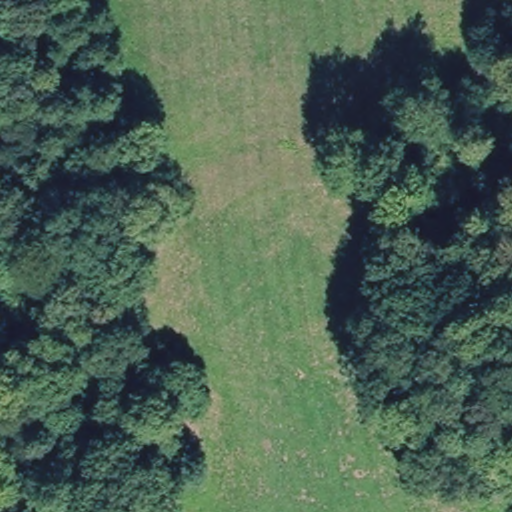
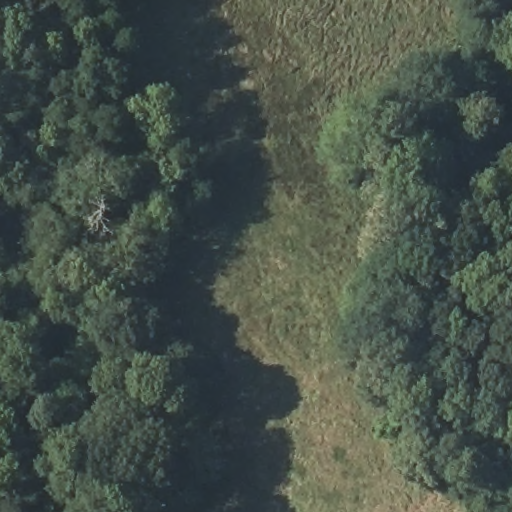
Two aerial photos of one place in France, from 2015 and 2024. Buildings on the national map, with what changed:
unchanged [(479,53),(511,46),(512,52),(512,91),(491,98),(479,53)]

